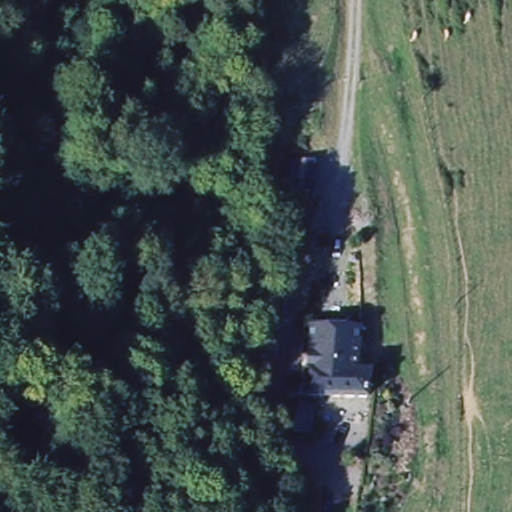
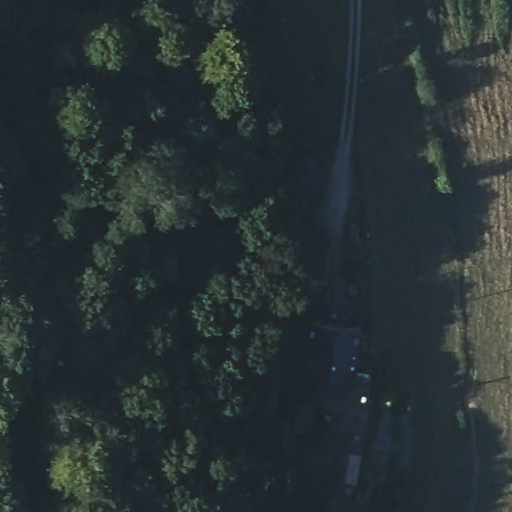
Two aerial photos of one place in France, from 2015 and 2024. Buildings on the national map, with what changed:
unchanged [(354,369),(368,371),(367,397),(316,397),(316,325),(353,325),(354,369)]
unchanged [(308,436),(308,404),(328,404),(329,436),(308,436)]

